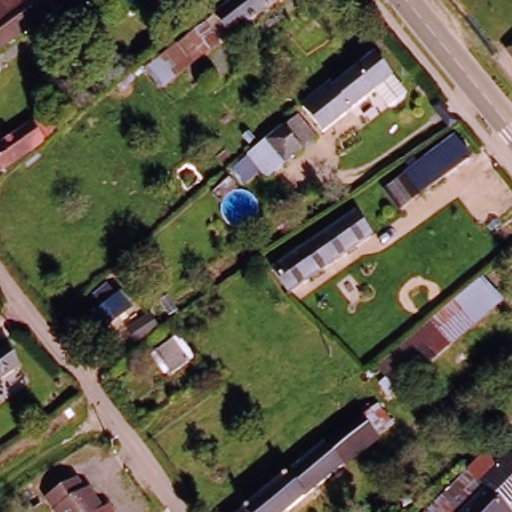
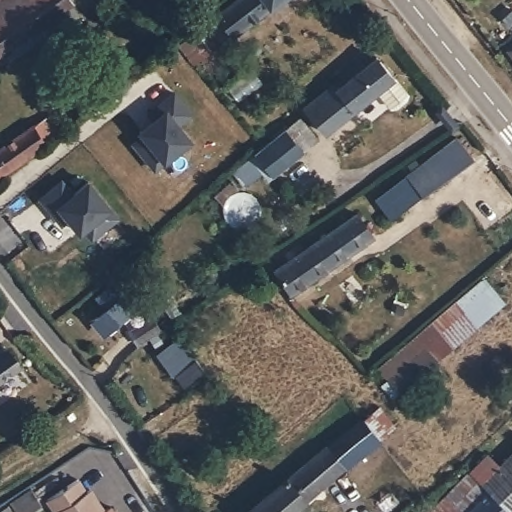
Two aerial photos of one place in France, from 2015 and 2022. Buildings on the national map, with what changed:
unchanged [(0,55),(0,2),(1,2),(0,1),(0,0),(74,0),(76,3),(0,55)]
unchanged [(216,14),(216,13),(233,0),(279,0),(270,6),(232,34),(224,40),(208,20),(216,14)]
unchanged [(161,86),(147,66),(208,20),(224,40),(161,86)]
unchanged [(512,46),(512,59),(506,51),(512,46)]
unchanged [(325,98),(377,56),(394,78),(354,110),(353,109),(342,118),(325,98)]
new [(144,134),(158,122),(152,115),(178,95),(196,116),(182,127),(195,143),(160,171),(138,146),(147,138),(144,134)]
unchanged [(36,126),(52,116),(65,133),(48,144),(0,176),(0,151),(36,126)]
unchanged [(255,153),(268,141),(300,116),(318,139),(286,164),(272,175),(255,153)]
unchanged [(383,185),(404,171),(403,169),(424,154),(454,132),(470,154),(440,176),(418,191),(398,204),(383,185)]
new [(84,234),(72,219),(66,224),(45,199),(65,182),(77,196),(92,183),(122,219),(97,240),(80,220),(88,230),(84,234)]
unchanged [(351,217),(368,240),(286,297),(270,274),(351,217)]
unchanged [(482,283),(501,306),(436,361),(416,337),(482,283)]
unchanged [(101,298),(114,288),(125,300),(127,298),(137,310),(109,333),(99,321),(112,310),(101,298)]
unchanged [(90,319),(94,315),(99,321),(95,325),(90,319)]
unchanged [(167,330),(144,344),(134,333),(157,318),(167,330)]
unchanged [(436,361),(402,389),(381,366),(416,337),(436,361)]
unchanged [(20,360),(0,375),(0,346),(6,342),(20,360)]
unchanged [(170,380),(153,359),(174,343),(191,365),(170,380)]
unchanged [(336,445),(370,418),(386,405),(401,423),(386,436),(328,483),(327,484),(291,512),(248,512),(334,443),(336,445)]
unchanged [(82,414),(76,418),(73,413),(78,409),(82,414)]
unchanged [(473,512),(436,512),(490,458),(503,471),(484,489),(490,495),(473,512)]
unchanged [(484,489),(503,471),(512,461),(512,512),(473,512),(490,495),(484,489)]
unchanged [(105,509),(111,505),(115,512),(59,512),(49,497),(78,478),(86,490),(91,488),(105,509)]

